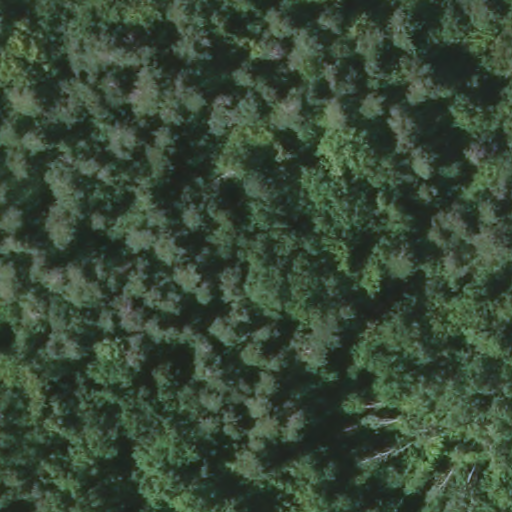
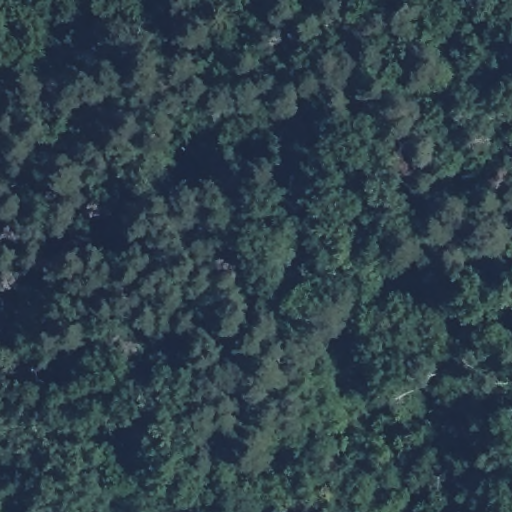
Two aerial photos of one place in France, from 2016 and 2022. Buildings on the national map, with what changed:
[]

